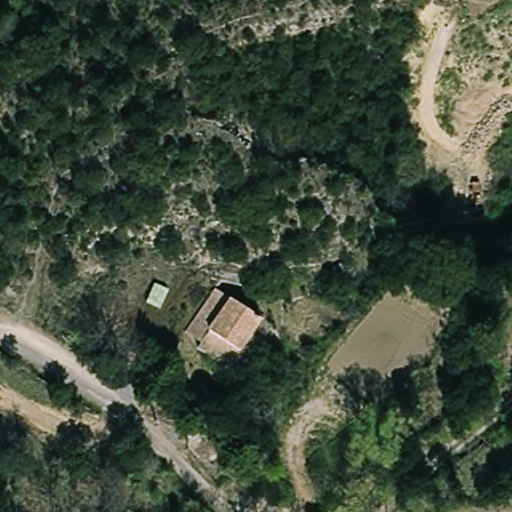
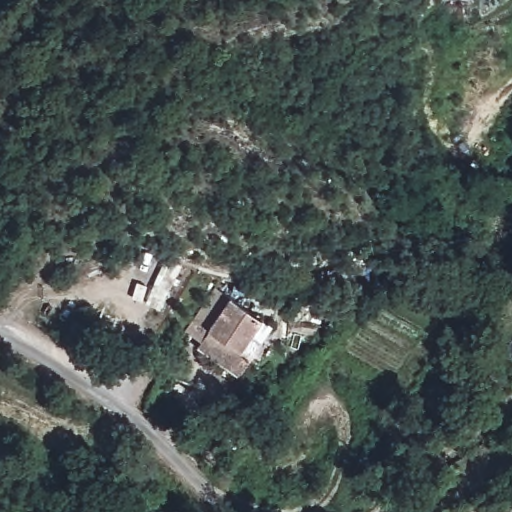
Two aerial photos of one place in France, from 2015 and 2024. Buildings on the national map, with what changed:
unchanged [(185,334),(210,285),(259,314),(253,324),(264,330),(243,367),(185,334)]

